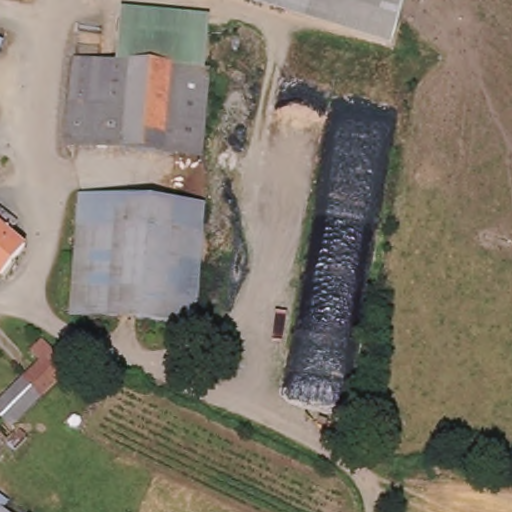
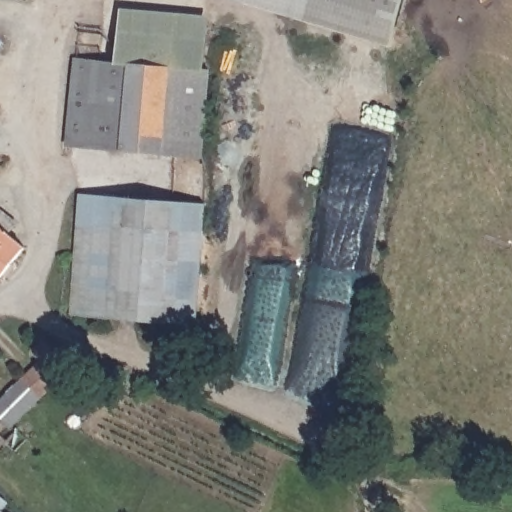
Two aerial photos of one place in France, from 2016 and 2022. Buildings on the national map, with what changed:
unchanged [(394,52),(226,0),(408,0),(394,52)]
unchanged [(121,8),(209,17),(206,74),(116,66),(121,8)]
unchanged [(0,51),(0,45),(2,46),(0,51)]
unchanged [(206,74),(200,156),(65,146),(73,62),(116,66),(125,67),(206,74)]
unchanged [(77,189),(206,203),(191,332),(101,321),(64,315),(66,288),(77,189)]
unchanged [(13,234),(26,244),(4,276),(0,273),(0,207),(21,223),(13,234)]
unchanged [(39,403),(17,383),(36,364),(26,354),(30,350),(39,343),(46,350),(67,371),(39,403)]
unchanged [(15,459),(0,442),(0,403),(17,383),(39,403),(15,430),(29,446),(15,459)]
unchanged [(3,512),(0,512),(0,497),(9,504),(3,512)]

